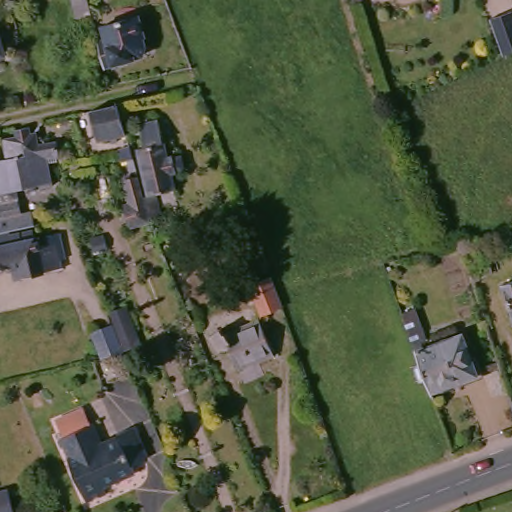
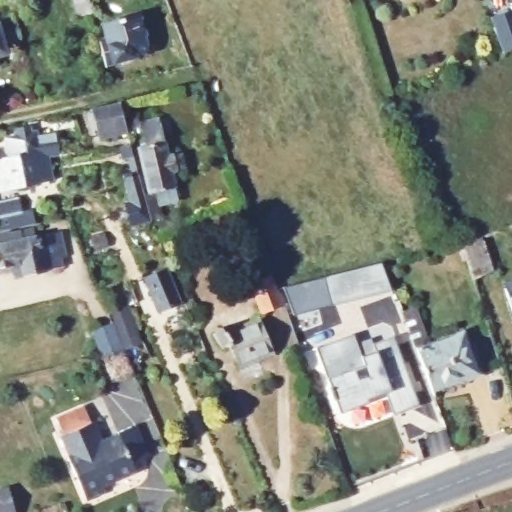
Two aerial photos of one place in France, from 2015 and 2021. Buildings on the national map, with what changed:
unchanged [(92,14),(76,17),(72,0),(89,0),(92,14)]
unchanged [(512,49),(501,55),(489,17),(512,10),(512,49)]
unchanged [(142,47),(142,54),(134,56),(135,59),(105,66),(98,40),(105,38),(102,25),(139,16),(144,39),(141,40),(142,47)]
unchanged [(12,55),(0,58),(0,25),(2,24),(12,55)]
unchanged [(132,139),(122,141),(122,147),(117,148),(115,137),(104,140),(98,115),(125,110),(132,139)]
unchanged [(129,208),(134,207),(128,184),(142,180),(147,200),(153,199),(142,152),(149,151),(144,130),(164,125),(172,162),(178,160),(179,162),(187,161),(189,172),(182,174),(183,176),(177,177),(180,192),(162,197),(167,221),(154,225),(134,230),(129,208)]
unchanged [(58,191),(41,195),(40,192),(21,196),(25,220),(37,217),(40,229),(5,237),(4,237),(0,222),(0,164),(1,166),(13,163),(10,145),(22,142),(20,135),(35,132),(36,141),(41,140),(44,151),(61,147),(64,162),(62,162),(63,167),(54,169),(58,191)]
unchanged [(139,165),(126,167),(123,154),(135,152),(139,165)]
unchanged [(122,213),(105,217),(97,180),(114,177),(122,213)]
unchanged [(67,273),(50,277),(15,284),(12,273),(0,275),(0,251),(10,249),(9,241),(25,237),(27,245),(42,242),(44,250),(62,246),(67,273)]
unchanged [(493,272),(472,280),(461,245),(467,242),(468,245),(483,239),(493,272)]
new [(381,264),(391,292),(331,307),(320,279),(381,264)]
unchanged [(275,288),(282,308),(260,316),(249,285),(270,277),(275,288)]
unchanged [(512,281),(512,312),(503,283),(512,281)]
unchanged [(475,373),(430,389),(401,312),(414,307),(425,339),(419,341),(421,347),(460,333),(475,373)]
unchanged [(143,349),(122,354),(112,326),(132,320),(143,349)]
unchanged [(274,355),(237,369),(229,348),(222,347),(220,349),(211,336),(221,329),(223,334),(259,320),(274,355)]
new [(338,411),(322,367),(316,350),(321,347),(353,335),(357,345),(371,340),(373,345),(393,337),(418,407),(398,415),(393,416),(385,394),(338,411)]
unchanged [(109,486),(111,492),(90,501),(72,457),(76,455),(68,436),(74,433),(67,417),(91,408),(97,424),(101,422),(107,438),(103,441),(104,443),(125,435),(124,432),(142,426),(154,457),(137,464),(140,472),(109,486)]
unchanged [(14,493),(19,512),(0,512),(0,511),(0,497),(14,493)]

